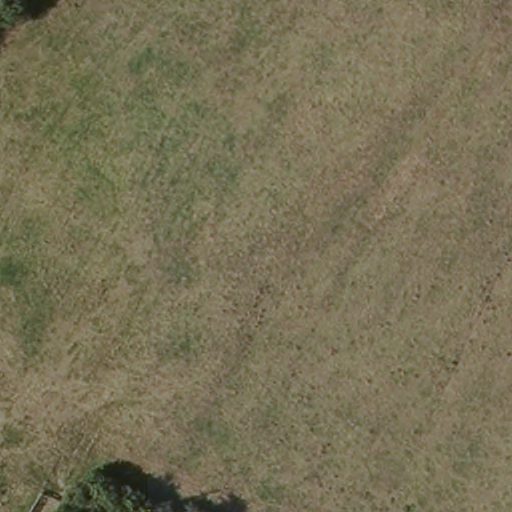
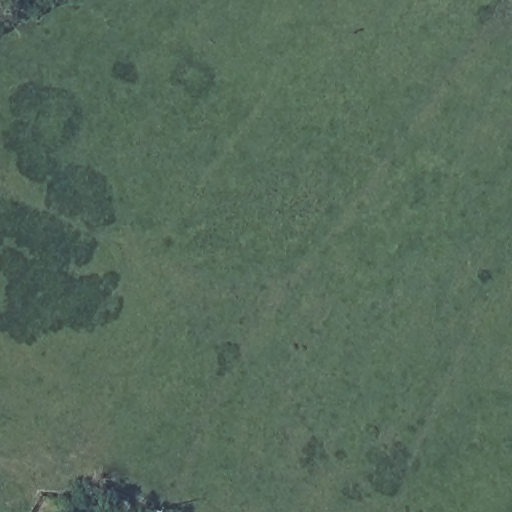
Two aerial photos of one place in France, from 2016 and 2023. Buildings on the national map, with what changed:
[]

